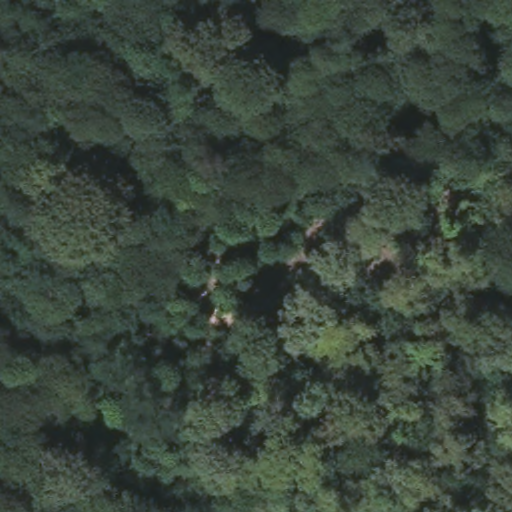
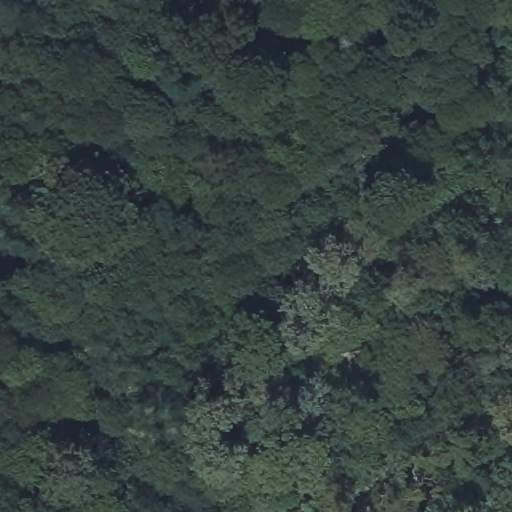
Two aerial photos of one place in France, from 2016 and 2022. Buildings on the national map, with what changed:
unchanged [(376,384),(376,381),(375,350),(415,351),(415,386),(387,385),(376,384)]

